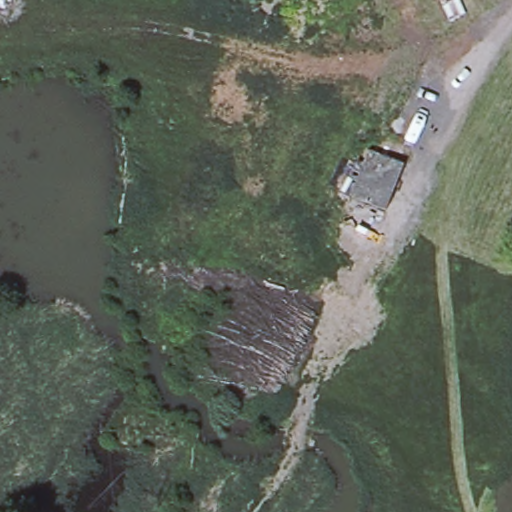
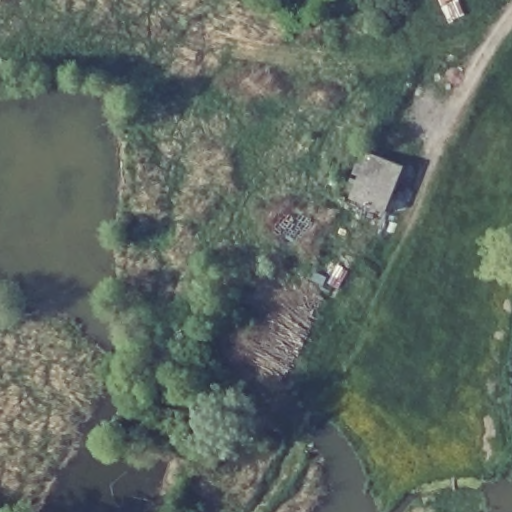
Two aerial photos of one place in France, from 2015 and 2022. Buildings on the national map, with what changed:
unchanged [(405,168),(385,214),(352,200),(372,153),(405,168)]

